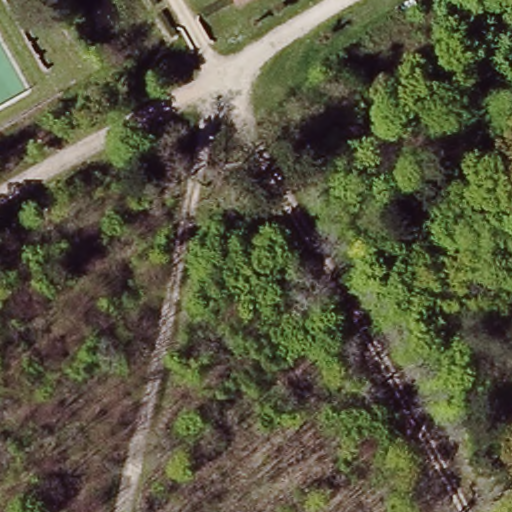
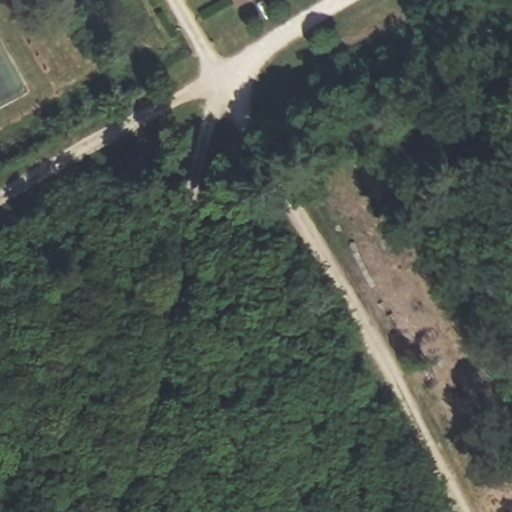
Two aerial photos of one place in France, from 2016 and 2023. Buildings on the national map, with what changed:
unchanged [(229,0),(244,0),(232,6),(229,0)]

